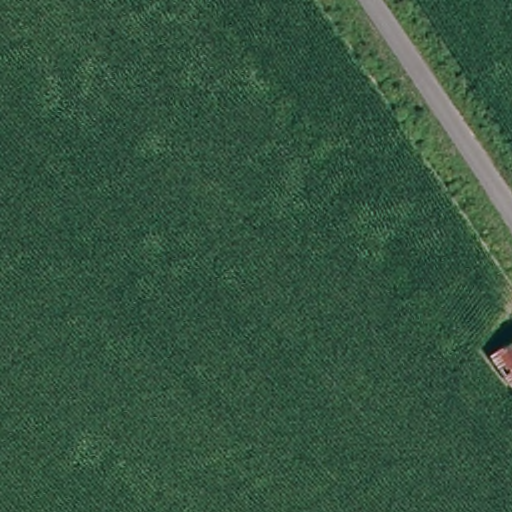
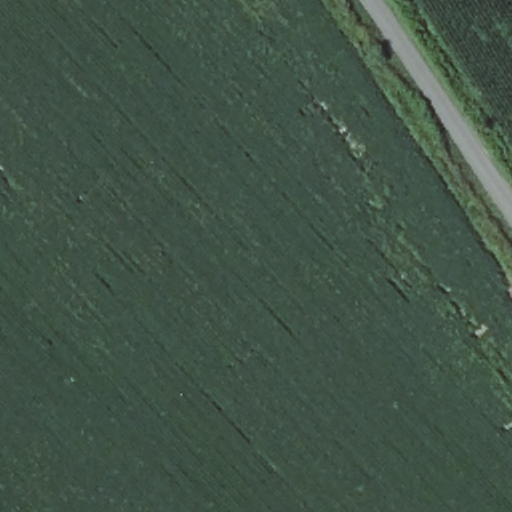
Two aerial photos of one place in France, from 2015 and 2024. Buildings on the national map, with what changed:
demolished [(510,383),(486,352),(512,332),(512,381),(510,383)]

